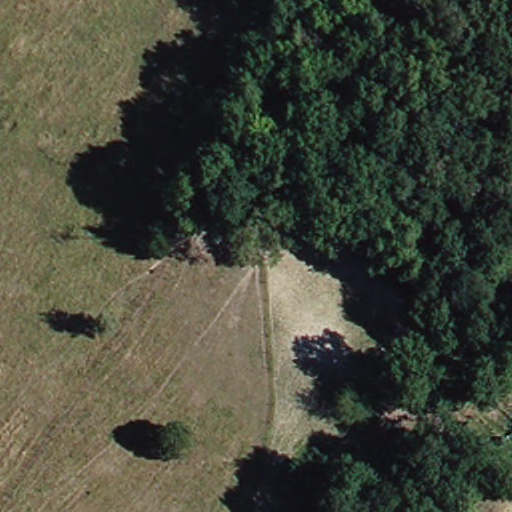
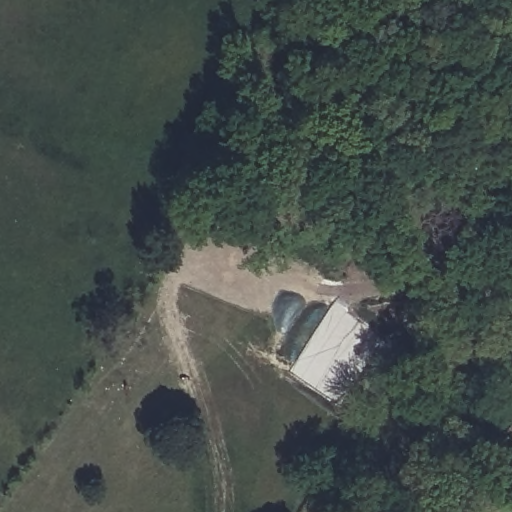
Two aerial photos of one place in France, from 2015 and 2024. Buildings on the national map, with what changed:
unchanged [(508,240),(512,233),(512,242),(508,240)]

